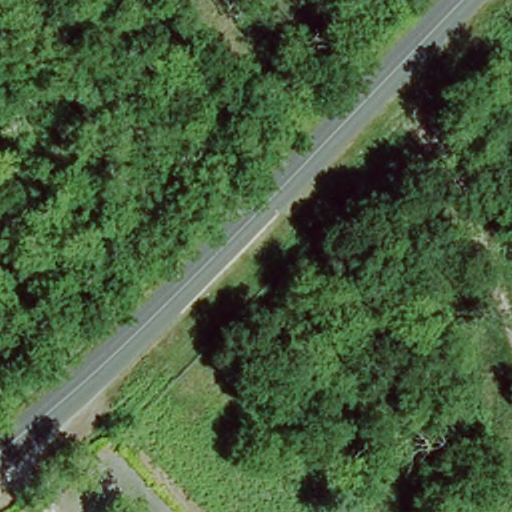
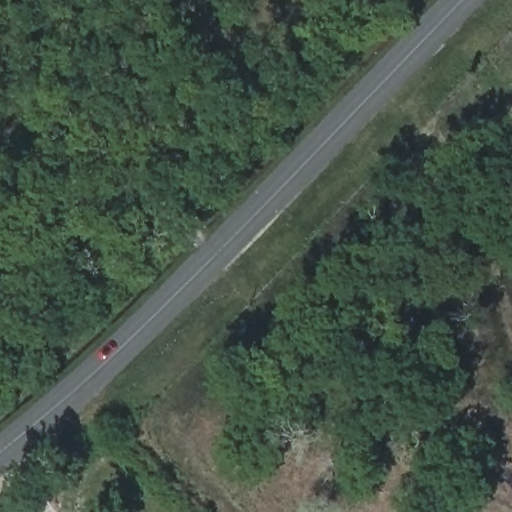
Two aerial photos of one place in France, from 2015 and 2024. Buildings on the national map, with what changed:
[]

